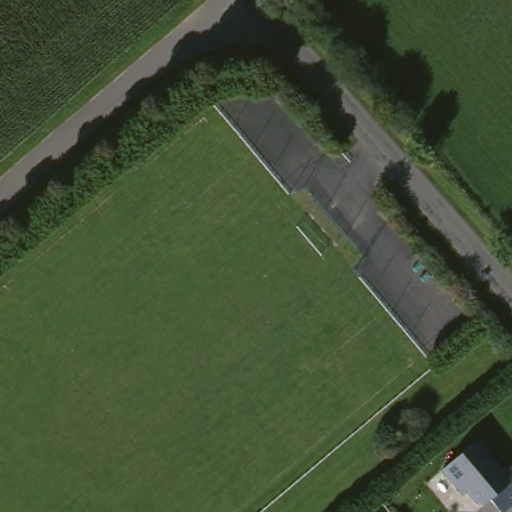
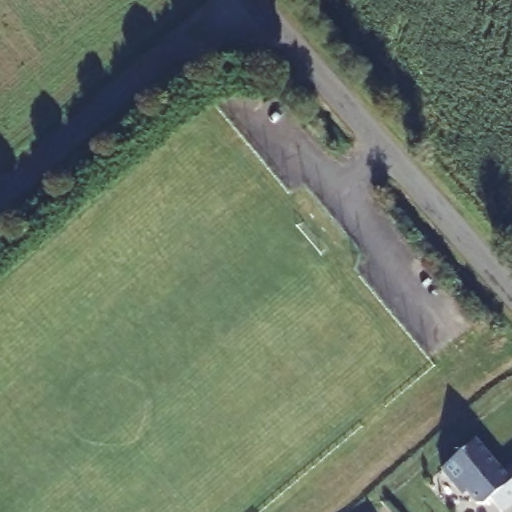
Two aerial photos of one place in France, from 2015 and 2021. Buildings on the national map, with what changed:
unchanged [(510,475),(512,473),(512,509),(508,512),(506,512),(497,501),(489,506),(483,505),(467,486),(462,490),(447,471),(482,442),(510,475)]

